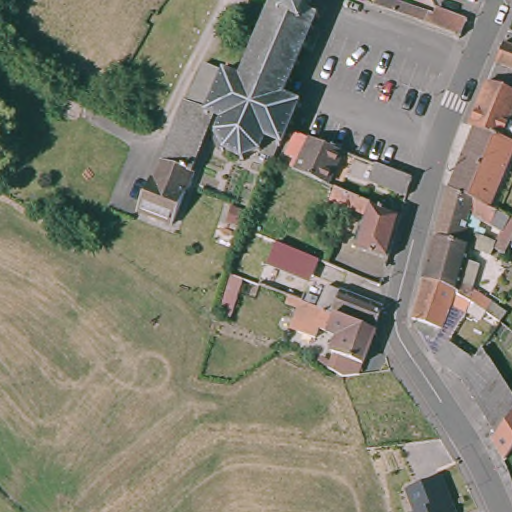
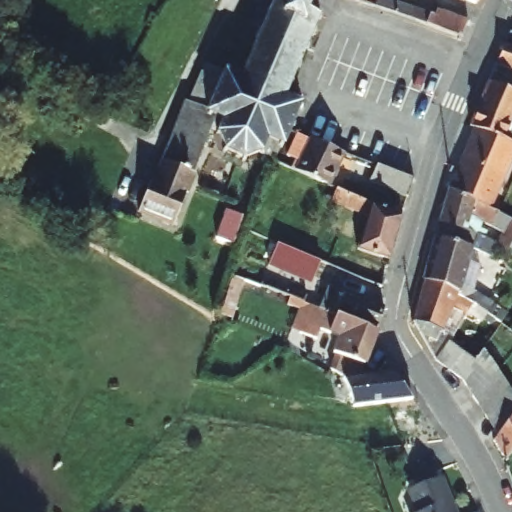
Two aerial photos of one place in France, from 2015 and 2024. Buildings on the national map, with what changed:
unchanged [(219,73),(235,79),(269,0),(274,0),(280,2),(281,0),(294,0),(303,4),(300,10),(310,14),(277,96),(292,103),(281,131),(275,147),(272,146),(267,157),(256,152),(255,154),(250,152),(237,157),(220,149),(213,134),(207,132),(197,128),(202,117),(201,116),(203,109),(219,73)]
unchanged [(474,2),(468,0),(475,0),(474,2)]
unchanged [(466,21),(459,37),(393,13),(397,3),(433,15),(435,10),(466,21)]
unchanged [(512,47),(512,70),(494,63),(501,43),(512,47)]
unchanged [(463,125),(481,82),(512,95),(512,104),(511,106),(512,106),(512,140),(510,144),(470,128),(463,125)]
unchanged [(200,153),(195,164),(171,222),(154,216),(137,210),(145,190),(150,179),(155,181),(162,162),(171,139),(177,125),(178,122),(186,101),(188,102),(192,104),(198,106),(202,108),(203,109),(201,116),(202,117),(197,128),(207,132),(200,153)]
unchanged [(331,119),(319,147),(314,144),(303,140),(281,131),(292,103),(300,106),(331,119)]
unchanged [(483,208),(444,188),(470,128),(510,144),(483,208)]
unchanged [(290,170),(303,140),(314,144),(319,147),(336,154),(322,185),(290,170)]
unchanged [(398,174),(412,179),(407,192),(373,179),(377,167),(398,174)]
unchanged [(382,259),(350,250),(359,217),(323,202),(330,188),(395,215),(382,259)]
unchanged [(483,208),(491,212),(485,225),(463,216),(458,230),(434,222),(444,188),(483,208)]
unchanged [(457,296),(452,292),(443,289),(417,280),(422,265),(434,222),(458,230),(469,233),(475,237),(490,244),(503,218),(512,222),(512,230),(501,249),(500,255),(487,250),(485,255),(471,250),(466,248),(465,253),(462,258),(477,264),(473,275),(468,291),(478,298),(486,304),(485,305),(501,316),(495,324),(493,323),(480,313),(474,322),(452,306),(459,297),(457,296)]
unchanged [(313,261),(298,303),(253,285),(271,244),(313,261)]
unchanged [(405,321),(417,280),(443,289),(452,292),(438,327),(428,342),(412,332),(405,321)]
unchanged [(318,307),(326,288),(376,309),(370,329),(318,307)]
unchanged [(325,356),(332,336),(322,332),(323,327),(315,324),(307,345),(292,339),(295,335),(288,333),(292,322),(297,323),(303,305),(305,305),(307,298),(315,301),(312,309),(341,320),(369,331),(368,335),(356,367),(325,356)]
unchanged [(492,433),(481,417),(471,403),(455,382),(460,374),(435,356),(446,338),(472,356),(481,344),(497,369),(506,383),(512,392),(512,451),(505,459),(492,433)]
new [(413,401),(355,409),(342,377),(392,372),(413,401)]
unchanged [(412,512),(405,491),(443,475),(456,512),(412,512)]

